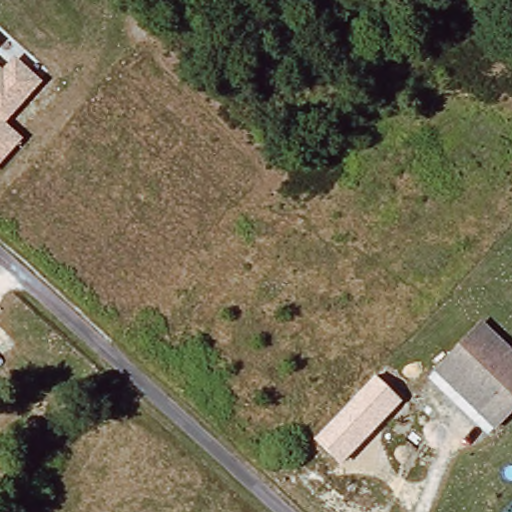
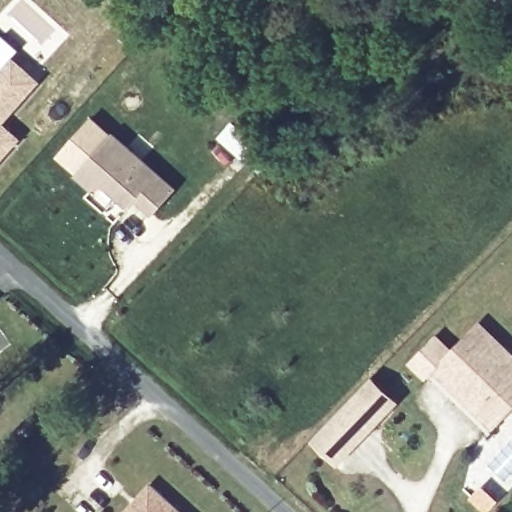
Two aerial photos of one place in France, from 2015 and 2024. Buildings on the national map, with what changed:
unchanged [(42,78),(2,120),(22,136),(0,160),(0,68),(14,53),(42,78)]
new [(110,134),(172,191),(151,214),(134,199),(127,207),(97,181),(91,190),(74,175),(110,134)]
unchanged [(483,415),(437,372),(482,324),(512,353),(512,413),(497,428),(483,415)]
unchanged [(311,441),(373,375),(401,402),(338,466),(311,441)]
new [(178,512),(125,512),(149,485),(178,512)]

